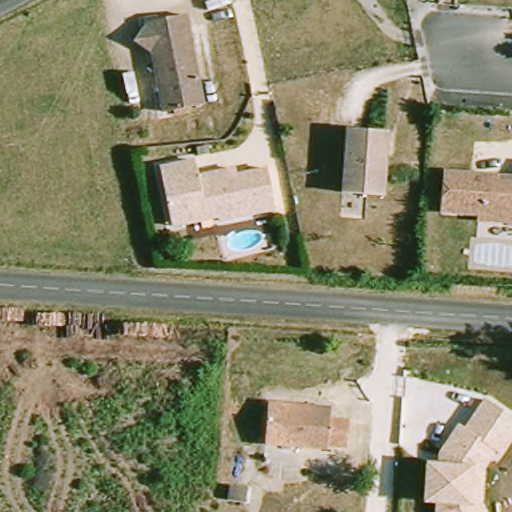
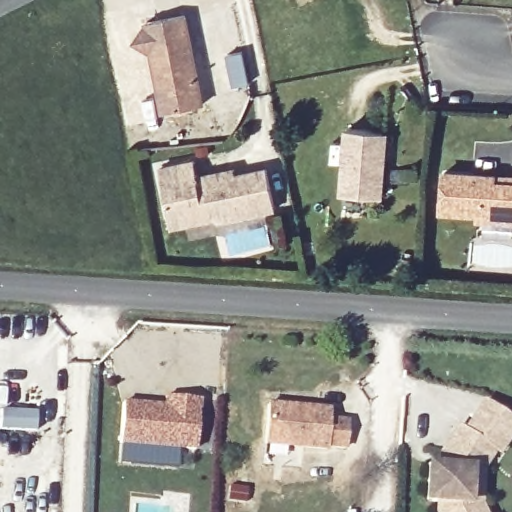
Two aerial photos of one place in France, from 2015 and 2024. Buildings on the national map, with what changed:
unchanged [(194,0),(211,88),(171,96),(160,35),(154,10),(153,6),(179,0),(194,0)]
unchanged [(383,194),(343,191),(347,127),(384,130),(382,155),(385,155),(383,194)]
unchanged [(167,214),(159,172),(194,165),(197,181),(210,178),(234,173),(235,179),(266,173),(275,214),(217,225),(217,221),(191,227),(171,231),(167,214)]
unchanged [(479,217),(479,212),(442,209),(445,170),(512,175),(512,219),(479,217)]
new [(120,404),(162,406),(164,396),(197,399),(194,449),(117,444),(120,404)]
unchanged [(435,505),(430,505),(422,504),(424,468),(431,468),(436,469),(442,469),(443,454),(440,452),(455,429),(462,433),(482,403),(512,423),(512,430),(495,456),(490,453),(478,471),(476,507),(479,512),(434,512),(435,505)]
unchanged [(324,448),(261,443),(264,404),(326,408),(324,448)]
new [(35,433),(0,431),(0,411),(36,413),(35,433)]

